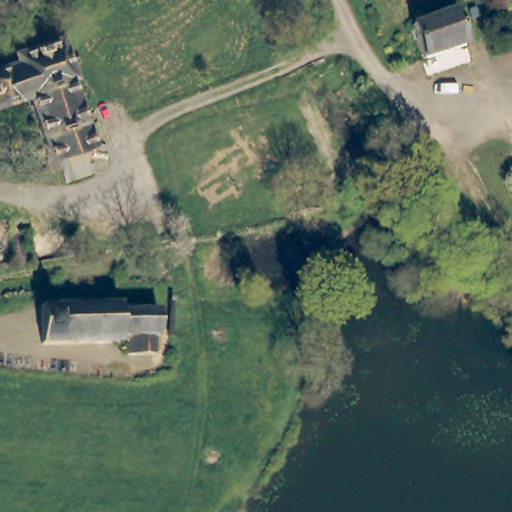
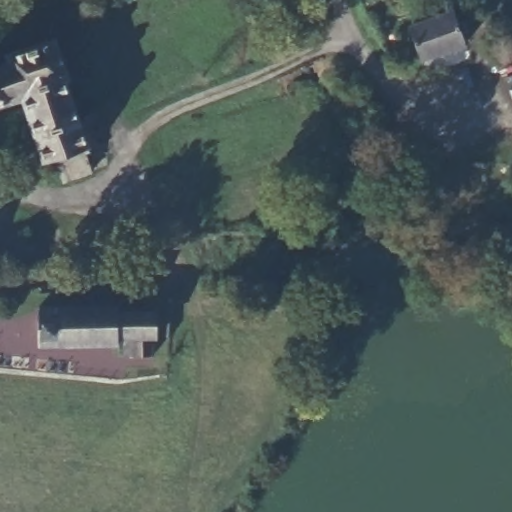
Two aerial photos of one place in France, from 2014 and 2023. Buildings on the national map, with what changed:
unchanged [(415,64),(402,27),(452,13),(465,51),(415,64)]
unchanged [(87,147),(81,148),(87,174),(58,181),(52,157),(42,160),(22,98),(0,105),(0,64),(57,46),(87,147)]
unchanged [(117,307),(117,319),(117,350),(35,346),(36,306),(117,307)]
unchanged [(162,321),(162,348),(147,347),(146,367),(125,366),(126,350),(117,350),(117,319),(162,321)]

